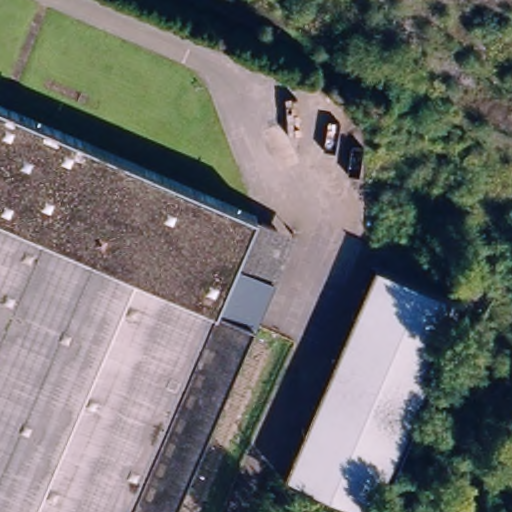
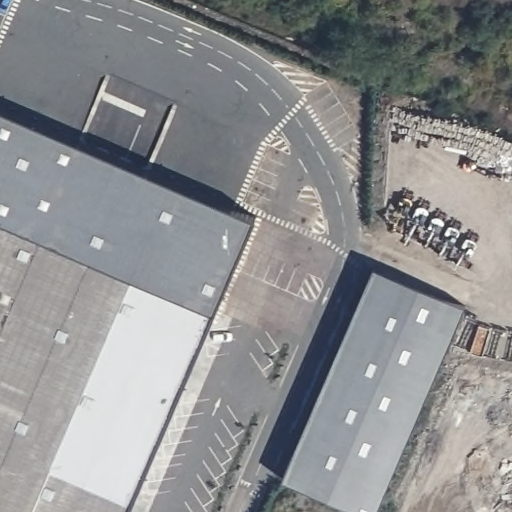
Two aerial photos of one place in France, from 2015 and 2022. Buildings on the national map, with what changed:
unchanged [(214,306),(252,325),(172,512),(0,512),(0,105),(255,215),(214,306)]
unchanged [(294,231),(252,325),(214,306),(255,215),(294,231)]
unchanged [(279,477),(372,267),(463,307),(374,512),(359,512),(279,477)]

